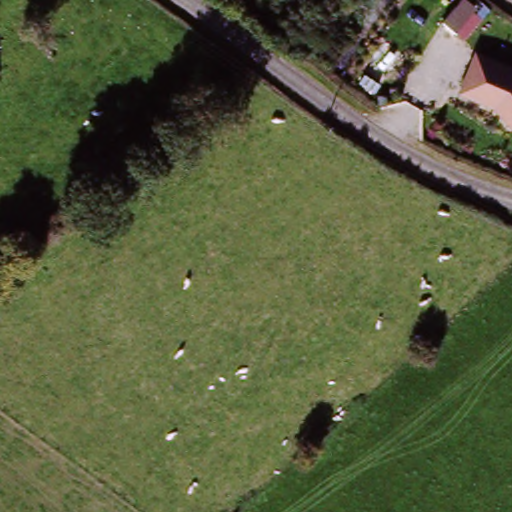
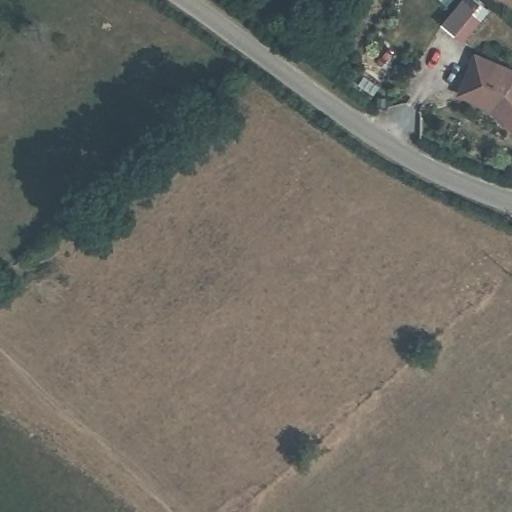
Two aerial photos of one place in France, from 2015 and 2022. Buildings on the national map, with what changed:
unchanged [(449,11),(455,0),(467,0),(474,5),(464,21),(449,11)]
unchanged [(512,68),(512,132),(494,115),(453,97),(473,53),(512,68)]

